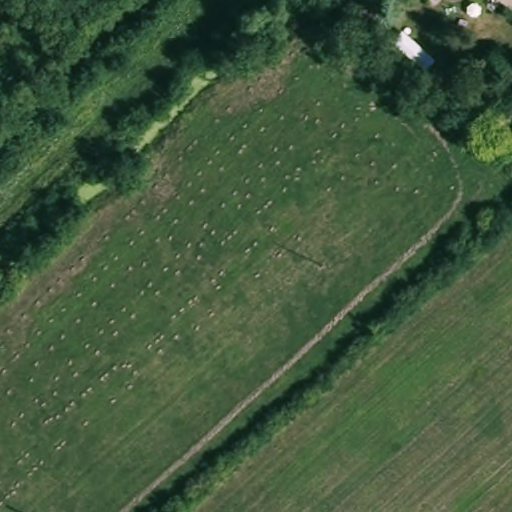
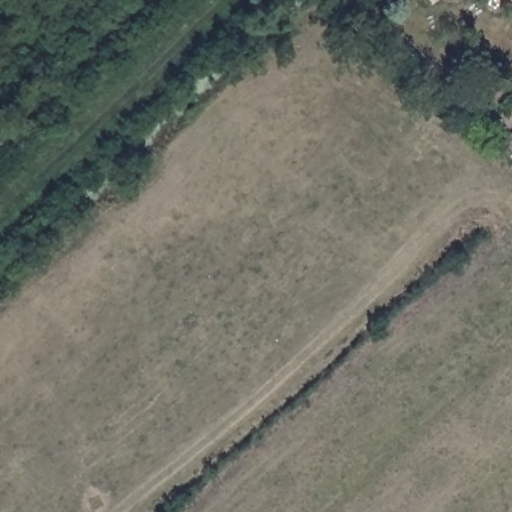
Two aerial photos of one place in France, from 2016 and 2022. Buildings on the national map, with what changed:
unchanged [(354,2),(344,11),(333,0),(352,0),(354,2)]

